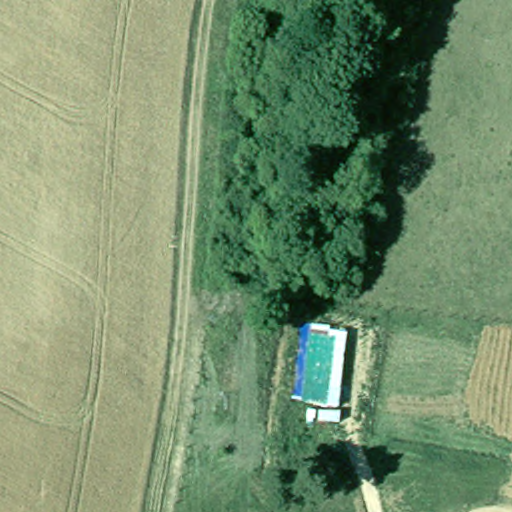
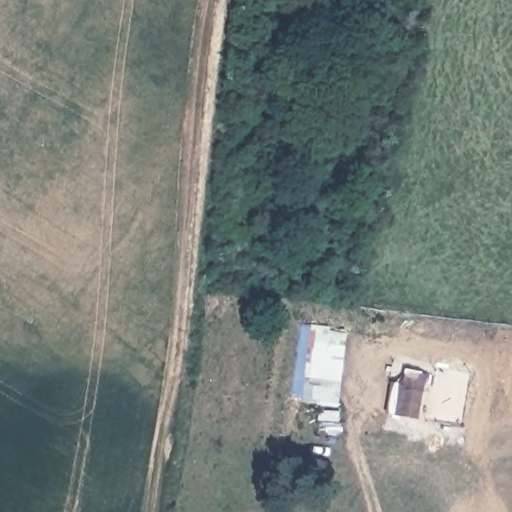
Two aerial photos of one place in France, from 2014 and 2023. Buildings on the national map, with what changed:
unchanged [(329,327),(329,333),(349,335),(338,408),(296,402),(306,323),(329,327)]

